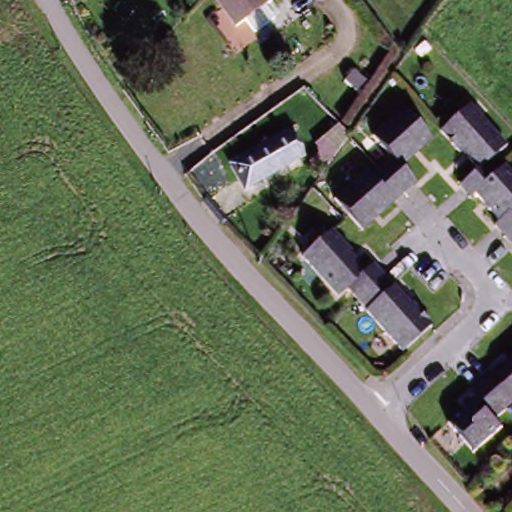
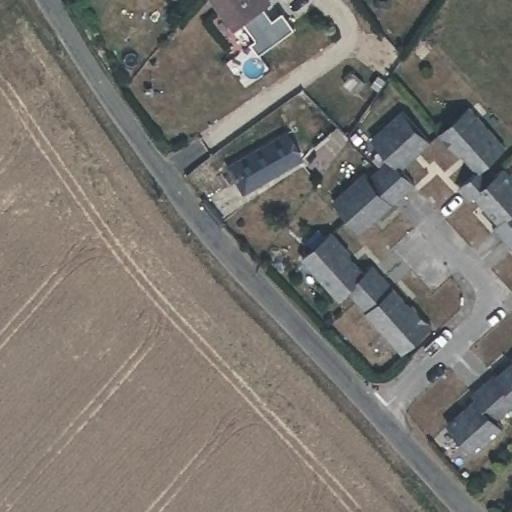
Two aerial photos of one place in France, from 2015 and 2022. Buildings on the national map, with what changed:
unchanged [(252,19),(235,30),(215,0),(269,0),(272,4),(266,9),(272,19),(260,28),(252,19)]
unchanged [(471,108),(498,142),(483,155),(495,170),(502,165),(512,178),(512,250),(507,253),(487,227),(492,222),(471,190),(463,195),(451,181),(469,166),(453,144),(448,148),(435,129),(466,102),(471,108)]
unchanged [(361,170),(366,177),(388,158),(374,139),(407,111),(432,145),(420,156),(416,151),(401,164),(412,178),(388,198),(383,194),(367,208),(370,213),(351,227),(330,197),(361,170)]
unchanged [(292,129),(307,151),(246,195),(231,173),(292,129)]
unchanged [(368,326),(360,309),(346,290),(335,297),(303,256),(337,229),(356,252),(352,255),(367,274),(375,269),(411,314),(415,311),(430,330),(394,358),(368,326)]
unchanged [(466,392),(462,387),(485,367),(490,372),(511,354),(508,351),(512,348),(512,403),(509,400),(490,417),(495,424),(462,450),(436,416),(466,392)]

